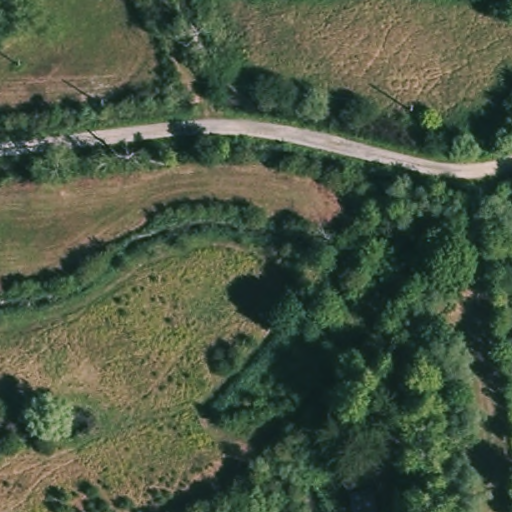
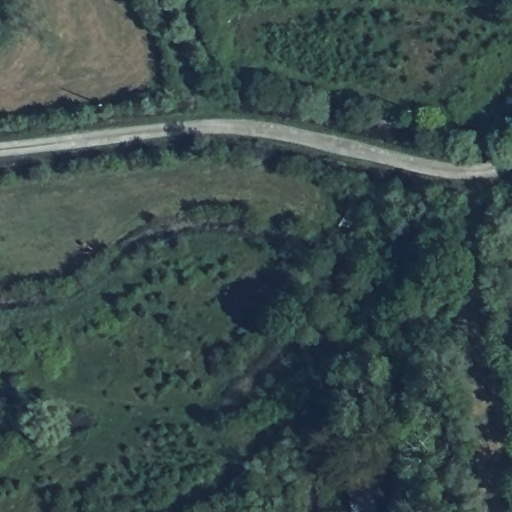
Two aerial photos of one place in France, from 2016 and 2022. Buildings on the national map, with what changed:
unchanged [(371,495),(373,512),(349,512),(348,499),(371,495)]

